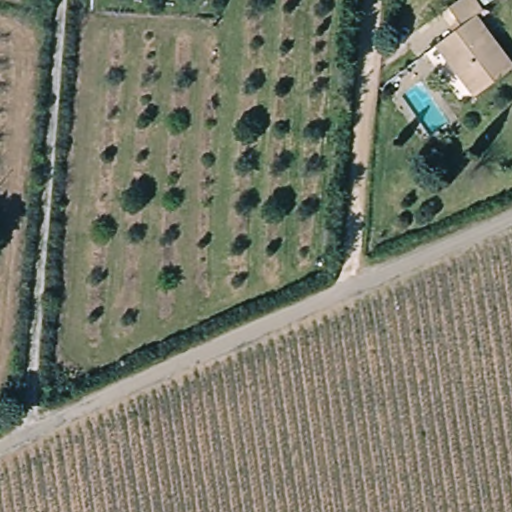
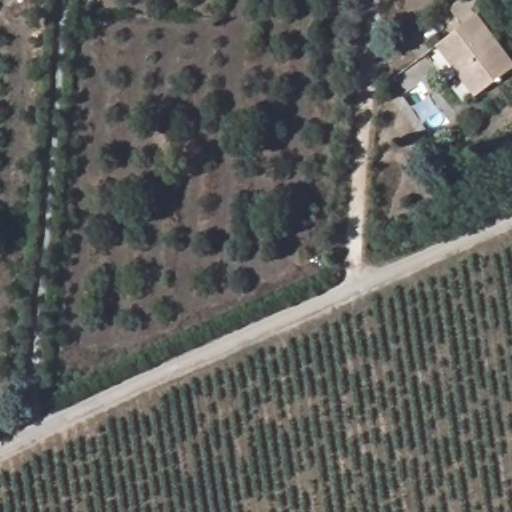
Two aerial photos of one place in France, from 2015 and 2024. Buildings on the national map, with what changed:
unchanged [(479,14),(512,58),(512,72),(477,99),(439,48),(465,26),(452,9),(465,0),(495,0),(479,14)]
unchanged [(440,131),(447,138),(437,145),(432,138),(440,131)]

